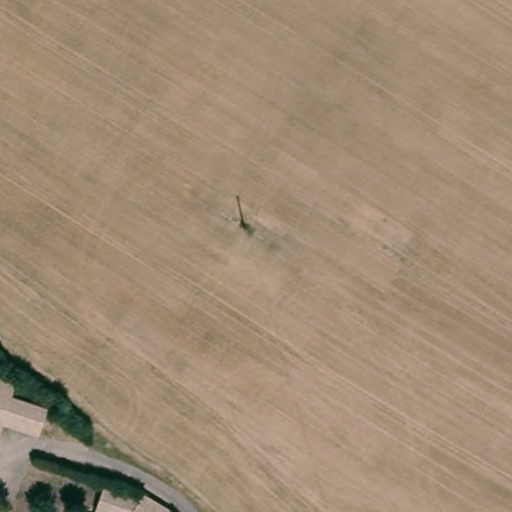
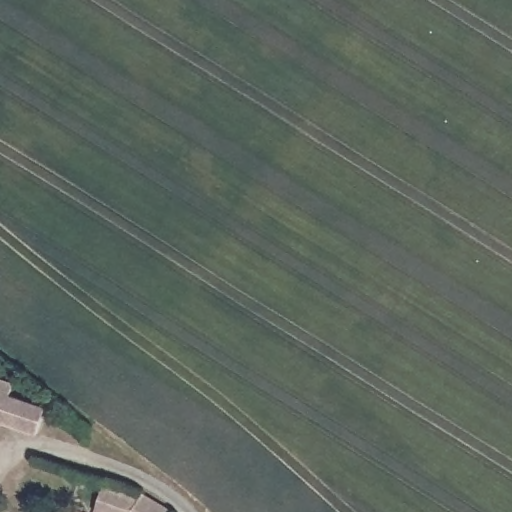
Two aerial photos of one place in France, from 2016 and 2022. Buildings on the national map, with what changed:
unchanged [(14,380),(10,396),(46,407),(37,435),(0,425),(0,376),(14,380)]
unchanged [(141,492),(172,511),(172,512),(93,512),(103,482),(139,496),(141,492)]

